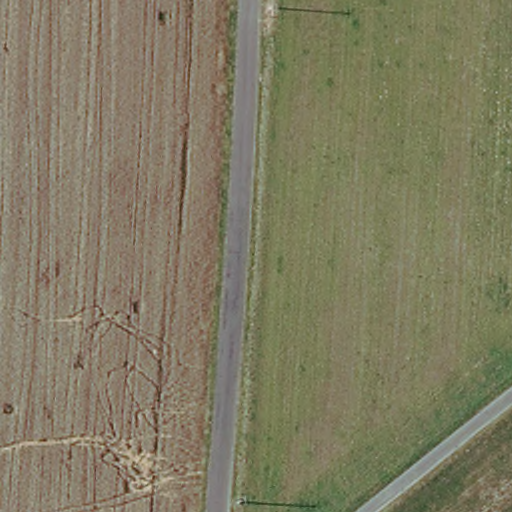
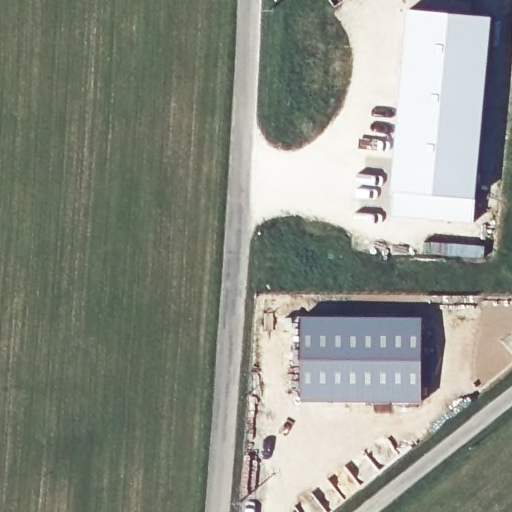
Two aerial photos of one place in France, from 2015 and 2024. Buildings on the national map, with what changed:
new [(409,10),(492,17),(475,223),(392,216),(409,10)]
new [(302,318),(422,318),(422,403),(301,403),(302,318)]

